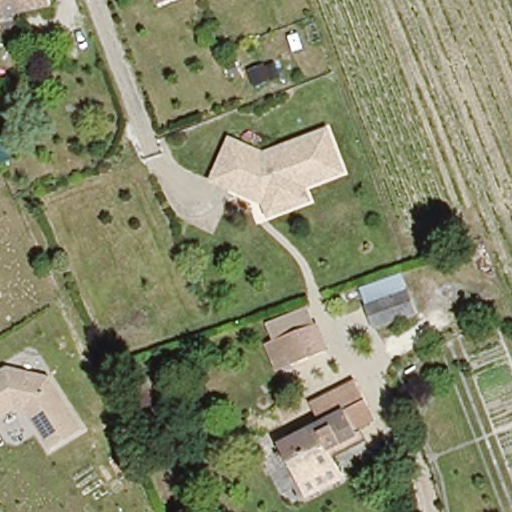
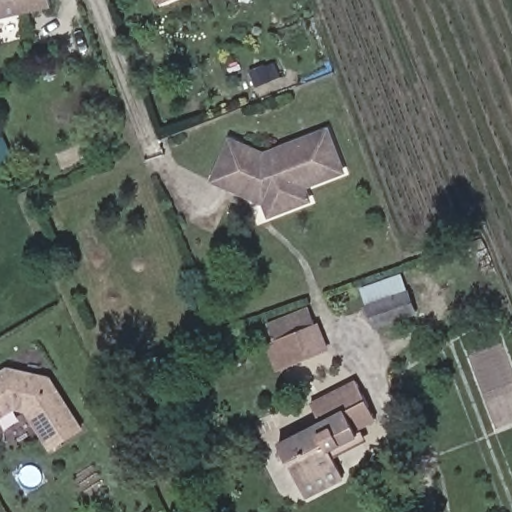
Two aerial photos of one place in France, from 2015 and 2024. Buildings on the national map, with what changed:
unchanged [(50,7),(0,18),(0,0),(48,0),(50,7)]
unchanged [(156,5),(153,0),(171,0),(156,5)]
unchanged [(341,174),(302,188),(308,202),(267,217),(262,198),(249,194),(248,198),(214,185),(227,145),(261,155),(277,150),(325,133),(341,174)]
unchanged [(366,292),(401,278),(410,301),(375,315),(366,292)]
unchanged [(264,329),(277,324),(314,312),(324,342),(288,355),(275,359),(264,329)]
unchanged [(0,371),(10,365),(50,376),(84,428),(47,446),(27,412),(15,410),(0,419),(0,371)]
unchanged [(356,426),(361,437),(342,447),(341,443),(331,449),(336,459),(337,463),(299,483),(286,457),(281,459),(277,450),(282,447),(280,441),(323,419),(315,401),(358,379),(377,416),(363,422),(356,426)]
unchanged [(343,464),(351,480),(303,502),(296,488),(343,464)]

